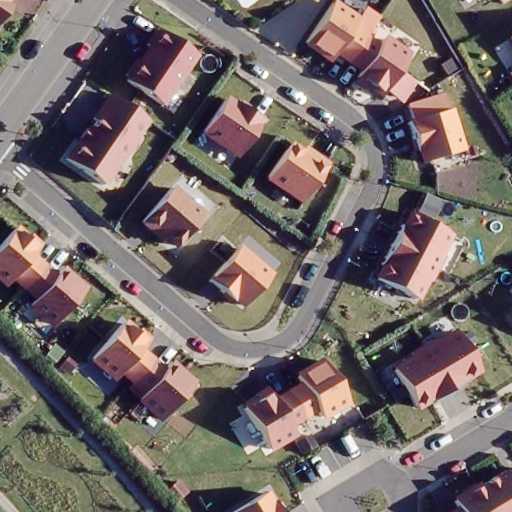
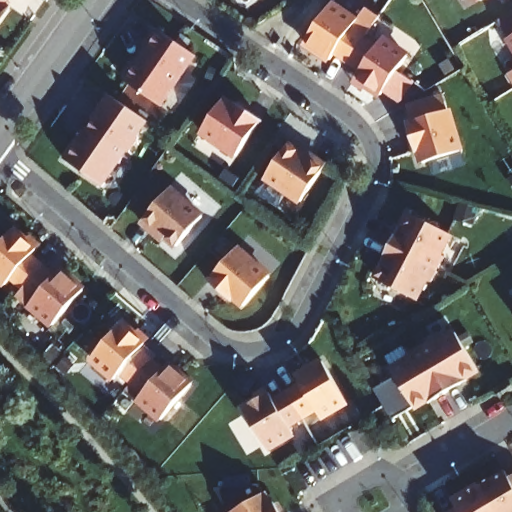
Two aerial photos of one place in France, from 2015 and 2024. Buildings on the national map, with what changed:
unchanged [(0,0),(1,0),(0,2),(0,0)]
unchanged [(480,0),(483,0),(481,1),(480,0)]
unchanged [(0,8),(0,2),(3,4),(0,8)]
unchanged [(334,54),(329,61),(304,44),(330,5),(355,22),(350,30),(363,38),(346,62),(334,54)]
unchanged [(193,51),(156,104),(121,80),(121,79),(120,73),(129,61),(135,60),(145,46),(141,44),(154,25),(193,51)]
unchanged [(509,39),(512,37),(512,43),(509,39)]
unchanged [(363,38),(376,47),(381,40),(406,57),(380,96),(355,79),(360,72),(346,62),(363,38)]
unchanged [(135,137),(126,151),(121,152),(98,184),(61,158),(75,139),(81,129),(85,131),(91,121),(88,119),(105,94),(143,119),(135,132),(135,137)]
unchanged [(221,101),(233,109),(235,105),(259,122),(234,157),(199,132),(221,101)]
unchanged [(417,150),(413,151),(405,123),(445,111),(458,152),(421,162),(417,150)]
unchanged [(285,147),(296,156),(299,152),(323,169),(297,204),(263,179),(285,147)]
unchanged [(166,187),(198,215),(173,244),(163,235),(160,239),(137,220),(166,187)]
unchanged [(399,225),(402,227),(410,214),(447,234),(436,254),(442,257),(435,270),(389,245),(399,225)]
unchanged [(11,279),(5,285),(0,280),(0,245),(13,230),(36,250),(30,257),(42,267),(23,289),(11,279)]
unchanged [(231,293),(228,297),(206,277),(235,245),(267,273),(241,302),(231,293)]
unchanged [(435,270),(429,282),(423,280),(412,300),(375,280),(382,267),(378,265),(389,245),(435,270)]
unchanged [(42,267),(54,277),(60,271),(82,291),(52,326),(29,306),(35,300),(23,289),(42,267)]
unchanged [(120,373),(114,380),(91,360),(121,324),(145,345),(139,351),(151,361),(131,383),(120,373)]
unchanged [(420,346),(432,338),(436,344),(455,333),(477,369),(465,377),(466,380),(447,392),(420,346)]
unchanged [(410,360),(407,354),(420,346),(447,392),(428,403),(425,400),(413,407),(391,371),(410,360)]
unchanged [(151,361),(162,371),(168,365),(191,385),(160,420),(137,400),(143,393),(131,383),(151,361)]
unchanged [(300,385),(295,377),(321,362),(345,402),(319,417),(315,410),(301,418),(286,392),(300,385)]
unchanged [(288,426),(292,433),(266,449),(242,409),(268,393),(273,401),(286,392),(301,418),(288,426)]
unchanged [(478,487),(504,471),(508,478),(512,476),(512,512),(493,512),(478,487)]
unchanged [(493,512),(451,512),(456,509),(452,502),(478,487),(493,512)]
unchanged [(254,512),(231,512),(248,502),(254,512)]

